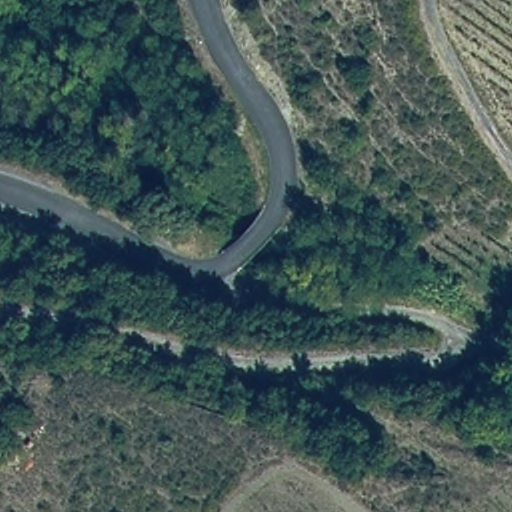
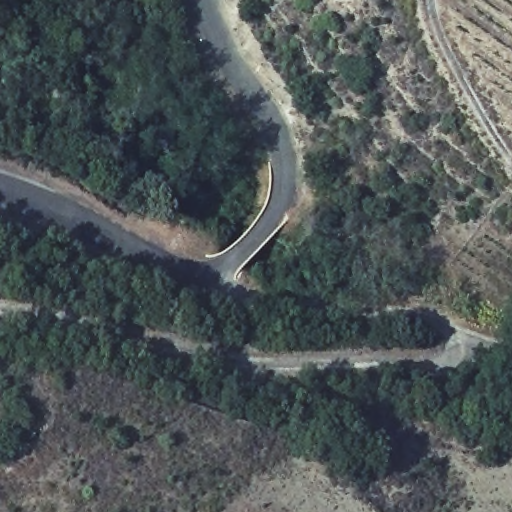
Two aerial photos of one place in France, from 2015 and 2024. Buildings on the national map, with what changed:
[]

